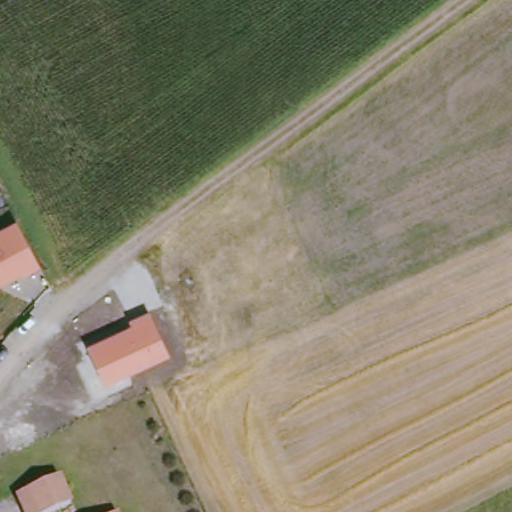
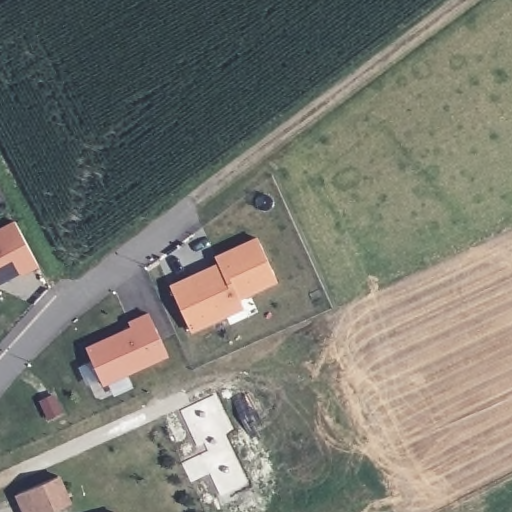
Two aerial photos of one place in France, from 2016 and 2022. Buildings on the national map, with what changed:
unchanged [(0,229),(18,220),(40,265),(0,287),(0,229)]
new [(241,300),(245,310),(192,332),(170,284),(218,263),(215,255),(257,236),(277,282),(241,300)]
unchanged [(130,325),(128,320),(148,311),(170,355),(103,385),(85,346),(130,325)]
unchanged [(55,512),(26,512),(19,494),(62,475),(73,503),(55,512)]
unchanged [(118,511),(118,512),(117,512),(118,511)]

